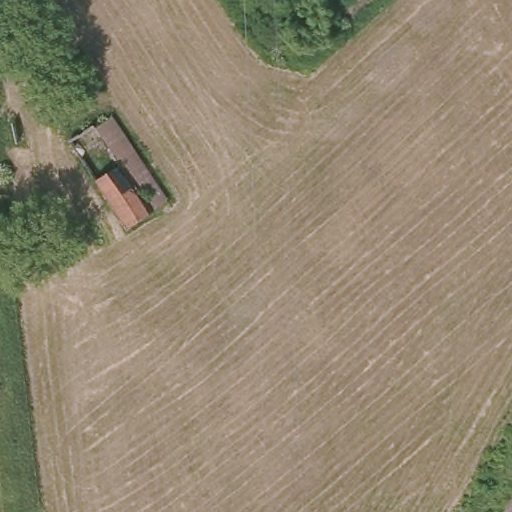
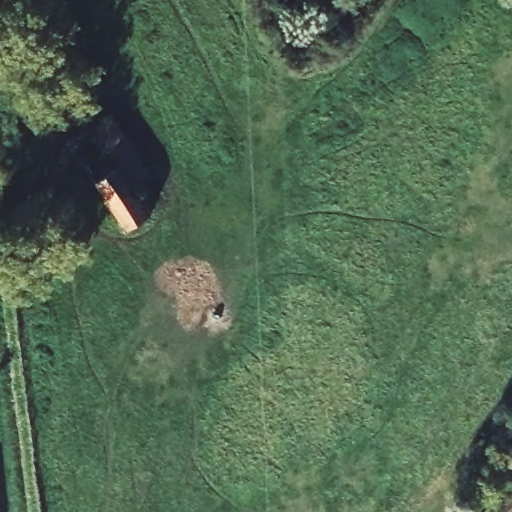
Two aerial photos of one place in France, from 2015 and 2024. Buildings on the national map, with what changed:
unchanged [(104,119),(162,205),(138,221),(77,135),(104,119)]

